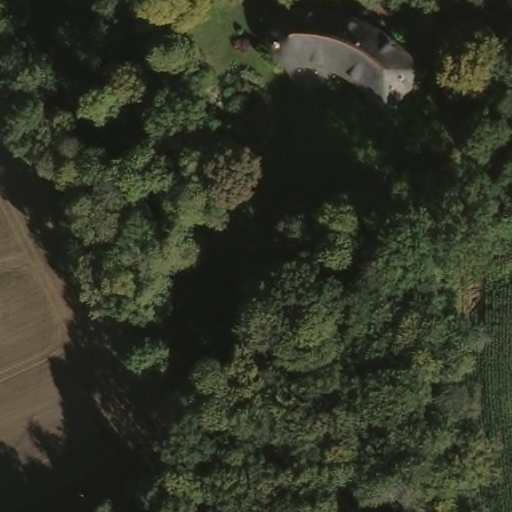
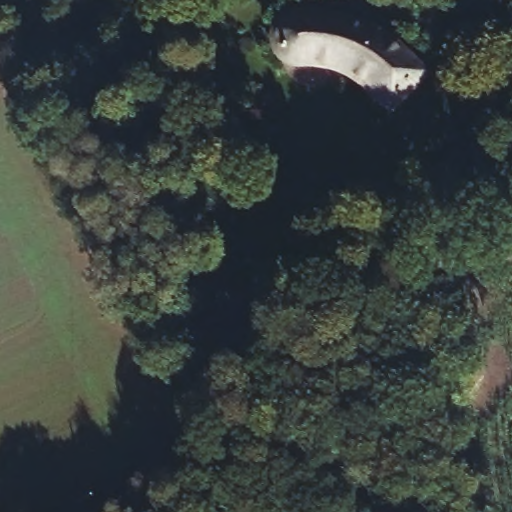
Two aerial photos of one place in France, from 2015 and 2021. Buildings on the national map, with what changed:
unchanged [(274,24),(280,20),(289,16),(297,14),(305,14),(315,13),(327,16),(339,19),(350,22),(363,28),(395,49),(422,73),(388,109),(349,80),(327,72),(297,66),(282,64),(274,61),(269,57),(266,51),(264,47),(263,41),(264,36),(268,30),(274,24)]
unchanged [(95,95),(75,105),(57,71),(78,61),(95,95)]

